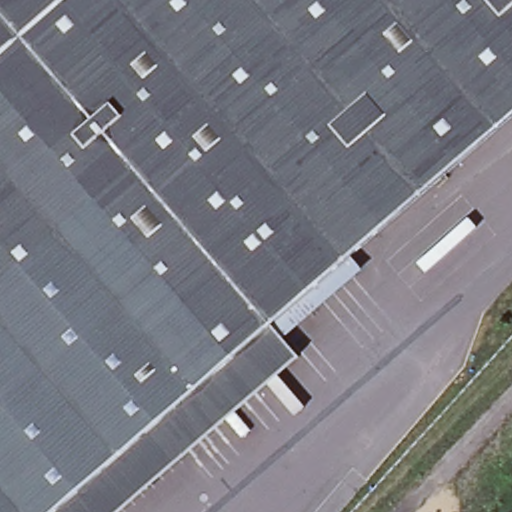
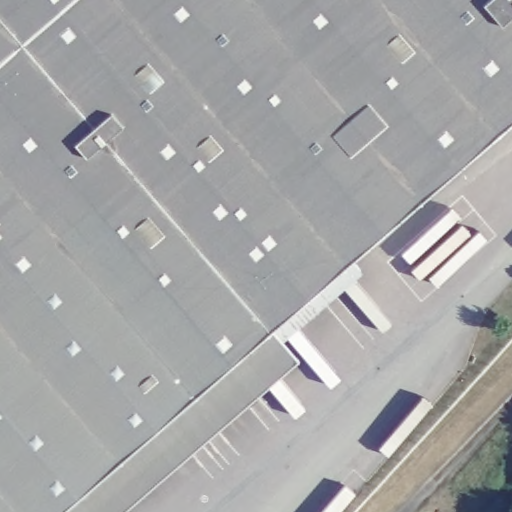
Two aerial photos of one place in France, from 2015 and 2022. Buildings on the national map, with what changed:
unchanged [(55,512),(0,512),(0,0),(512,0),(512,117),(271,326),(55,512)]
unchanged [(271,326),(299,357),(120,512),(55,512),(271,326)]

